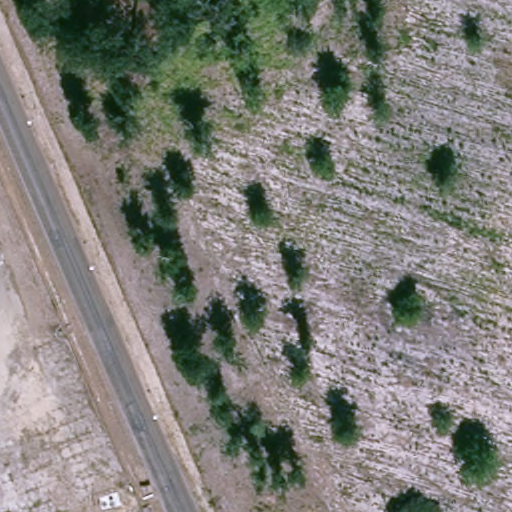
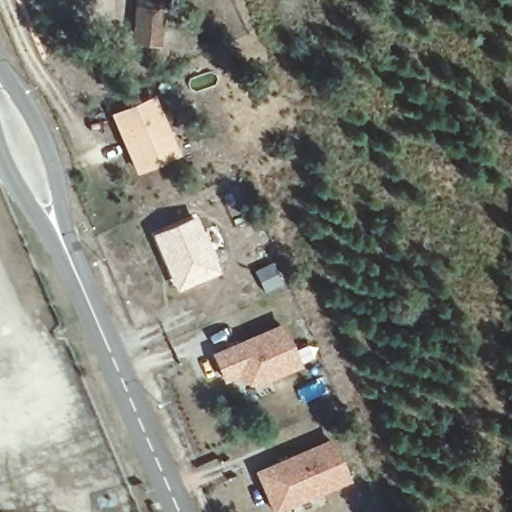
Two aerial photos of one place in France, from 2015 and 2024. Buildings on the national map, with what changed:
unchanged [(150,41),(155,0),(179,0),(173,45),(150,41)]
new [(110,115),(154,97),(181,155),(136,174),(110,115)]
new [(177,291),(152,234),(195,216),(219,272),(177,291)]
new [(284,322),(302,366),(254,387),(239,380),(238,375),(224,381),(212,351),(284,322)]
new [(333,436),(352,480),(278,512),(273,512),(254,470),(333,436)]

